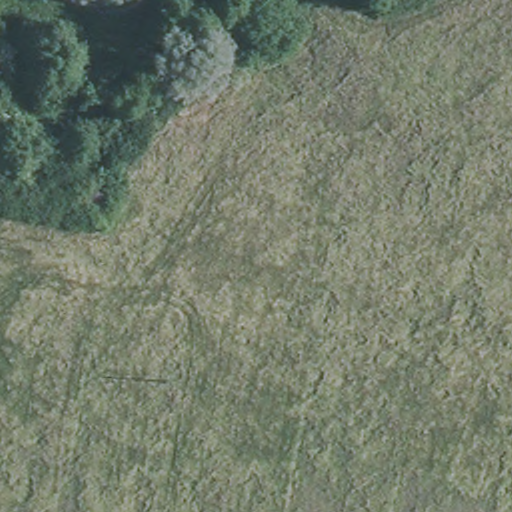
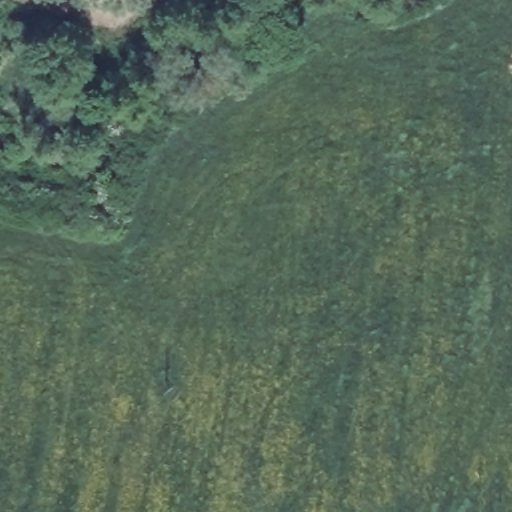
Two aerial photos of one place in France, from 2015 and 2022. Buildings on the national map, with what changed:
unchanged [(72,213),(78,185),(115,202),(102,223),(72,213)]

